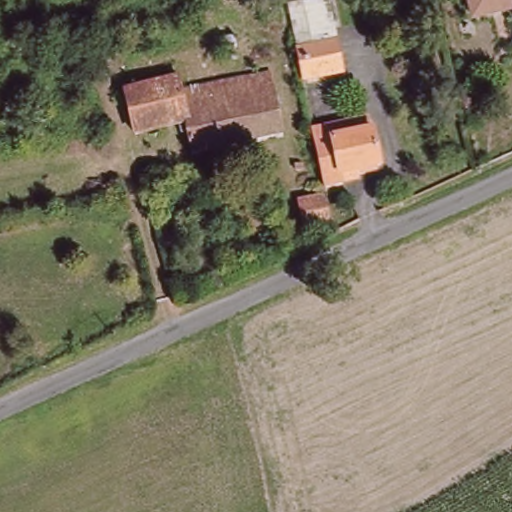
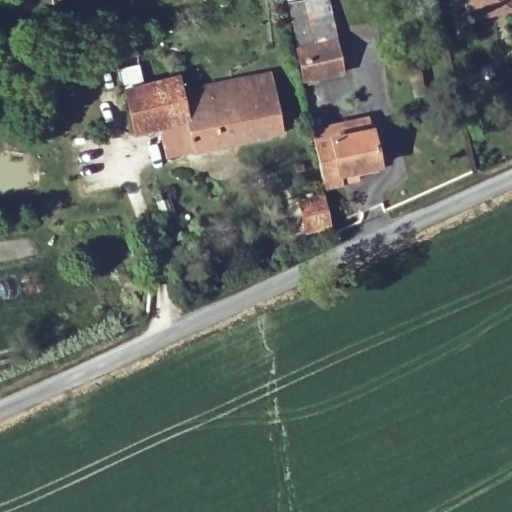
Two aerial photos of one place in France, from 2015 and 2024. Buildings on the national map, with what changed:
unchanged [(283,9),(282,0),(297,0),(298,5),(325,1),(335,40),(341,76),(302,84),(297,51),(291,7),(283,9)]
unchanged [(476,16),(471,0),(512,0),(512,7),(476,16)]
unchanged [(178,80),(179,96),(282,71),(294,131),(189,156),(183,128),(134,139),(123,96),(178,80)]
unchanged [(348,186),(325,190),(310,126),(367,114),(379,165),(359,169),(364,182),(348,186)]
unchanged [(307,227),(303,200),(326,195),(330,223),(307,227)]

